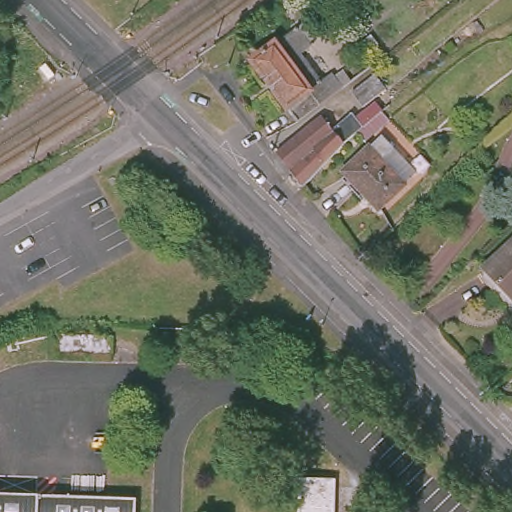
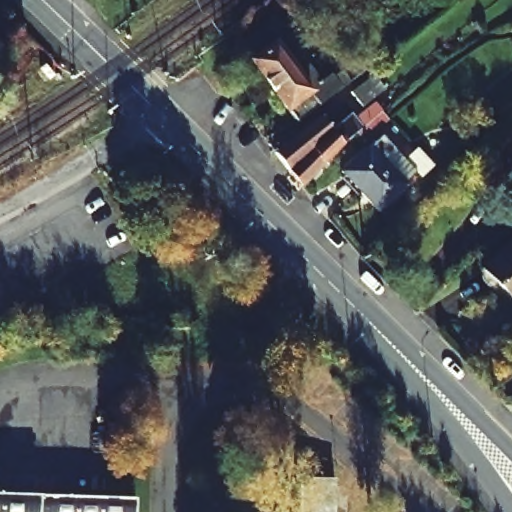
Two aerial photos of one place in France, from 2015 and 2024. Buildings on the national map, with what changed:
unchanged [(307,46),(297,55),(319,81),(329,75),(340,89),(296,121),(250,62),(293,29),(307,46)]
unchanged [(388,89),(366,105),(356,91),(378,75),(388,89)]
unchanged [(300,185),(287,170),(290,167),(338,127),(336,125),(353,111),(363,125),(370,120),(377,130),(364,140),(356,131),(339,145),(300,185)]
unchanged [(273,152),(320,116),(330,130),(336,125),(338,127),(290,167),(287,170),(273,152)]
unchanged [(403,184),(375,210),(341,170),(368,146),(403,184)]
unchanged [(484,272),(512,246),(512,301),(484,272)]
unchanged [(292,485),(328,486),(328,512),(291,512),(292,485)]
unchanged [(0,496),(136,501),(136,512),(0,512),(0,496)]

